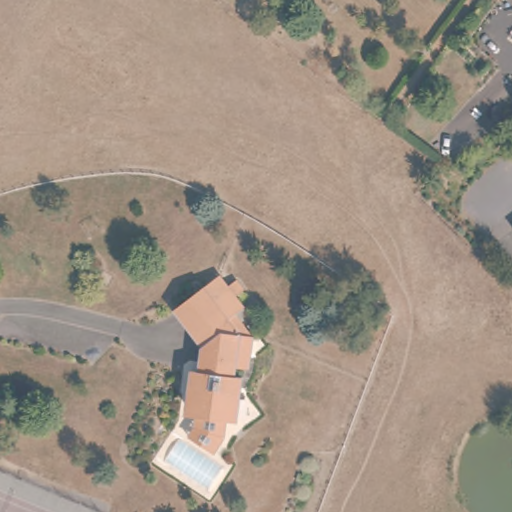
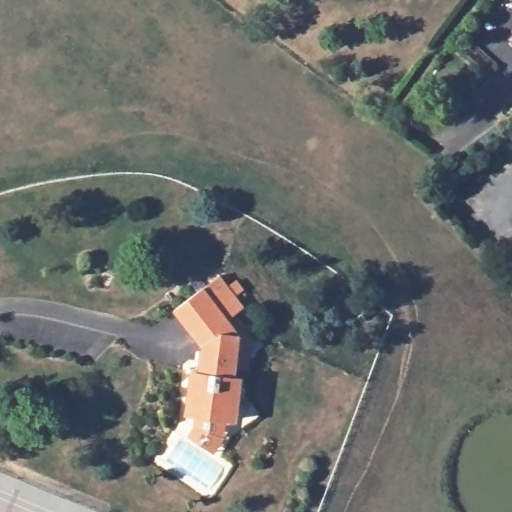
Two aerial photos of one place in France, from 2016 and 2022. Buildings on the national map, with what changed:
unchanged [(213,451),(195,439),(202,425),(201,416),(197,415),(194,409),(197,392),(192,385),(195,371),(206,373),(208,364),(203,363),(207,344),(179,309),(223,273),(249,304),(241,312),(256,336),(249,371),(240,369),(238,379),(244,380),(240,399),(237,399),(233,422),(222,420),(221,437),(213,451)]

